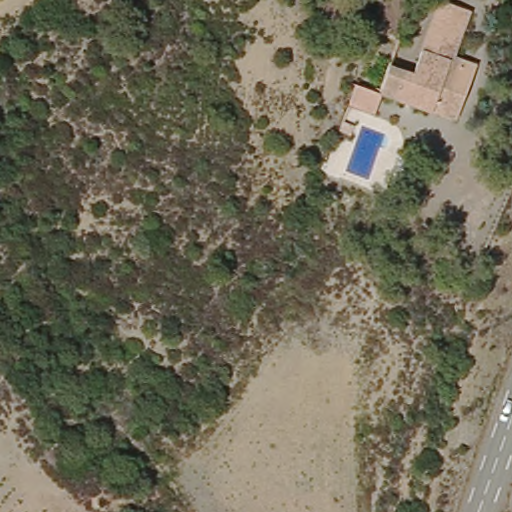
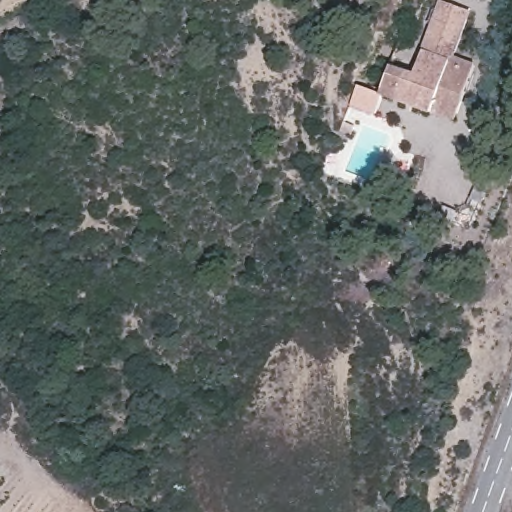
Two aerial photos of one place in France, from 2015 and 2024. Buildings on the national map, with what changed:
unchanged [(434,109),(379,90),(386,66),(395,69),(418,0),(443,0),(467,7),(450,58),(473,66),(462,99),(455,116),(434,109)]
unchanged [(370,116),(358,112),(344,108),(350,86),(361,88),(377,95),(370,116)]

